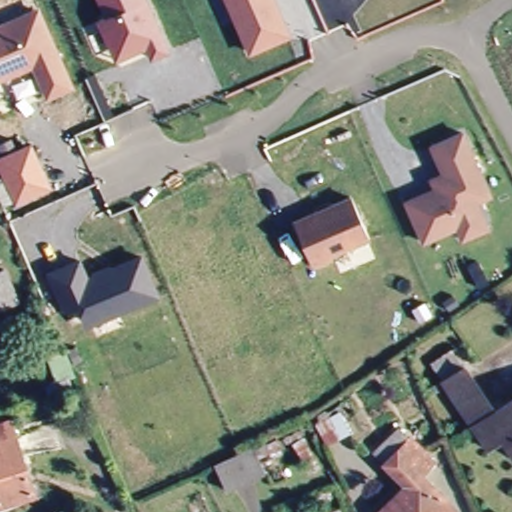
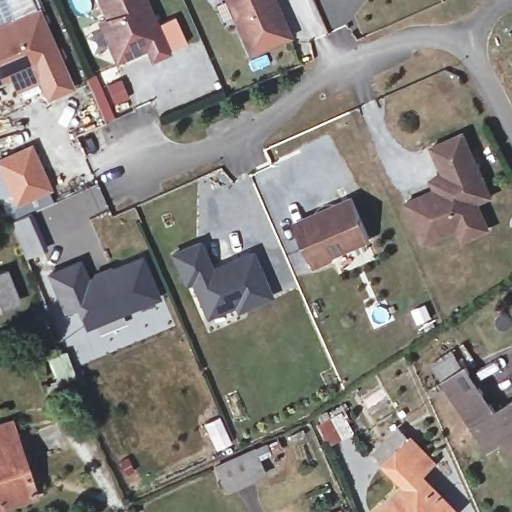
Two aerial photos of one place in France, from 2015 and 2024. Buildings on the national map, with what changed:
unchanged [(151,58),(146,45),(124,55),(112,50),(99,20),(107,16),(100,0),(145,0),(167,50),(151,58)]
unchanged [(226,0),(273,0),(288,35),(249,52),(226,0)]
unchanged [(47,100),(35,69),(0,83),(0,31),(38,14),(72,89),(47,100)]
unchanged [(465,239),(458,225),(425,242),(407,202),(438,188),(433,179),(446,173),(433,146),(465,132),(483,172),(493,194),(480,202),(490,227),(465,239)]
unchanged [(53,197),(20,210),(1,169),(35,154),(53,197)]
unchanged [(335,254),(334,258),(315,266),(298,226),(296,222),(317,213),(354,197),(372,238),(335,254)]
new [(210,274),(215,272),(226,267),(250,256),(269,298),(238,312),(235,306),(208,319),(191,284),(185,286),(172,258),(197,246),(210,274)]
unchanged [(160,304),(95,332),(88,329),(80,313),(68,318),(52,282),(82,269),(90,288),(144,265),(160,304)]
unchanged [(0,272),(16,303),(0,311),(0,272)]
unchanged [(508,435),(491,451),(443,396),(467,375),(496,407),(512,392),(512,439),(508,435)]
unchanged [(215,463),(300,428),(315,460),(305,464),(294,444),(262,459),(267,475),(227,491),(215,463)]
unchanged [(0,436),(15,432),(40,504),(13,512),(0,512),(0,436)]
unchanged [(440,464),(425,488),(453,512),(384,512),(413,479),(395,463),(412,441),(440,464)]
unchanged [(341,508),(343,512),(330,512),(341,508)]

